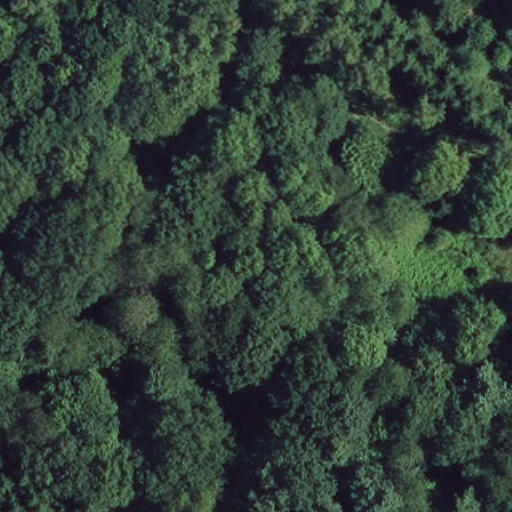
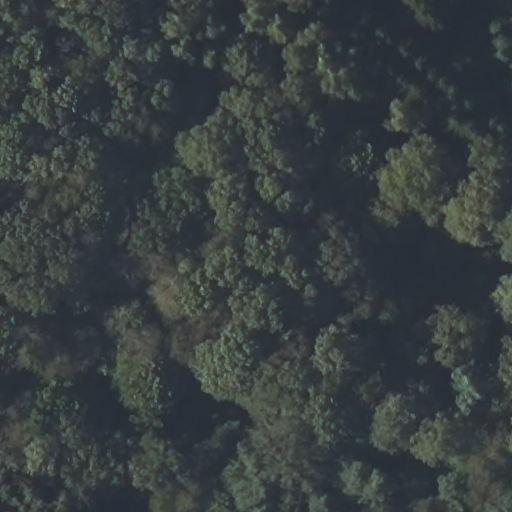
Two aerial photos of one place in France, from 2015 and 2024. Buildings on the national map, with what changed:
unchanged [(451,20),(468,2),(483,16),(466,34),(451,20)]

